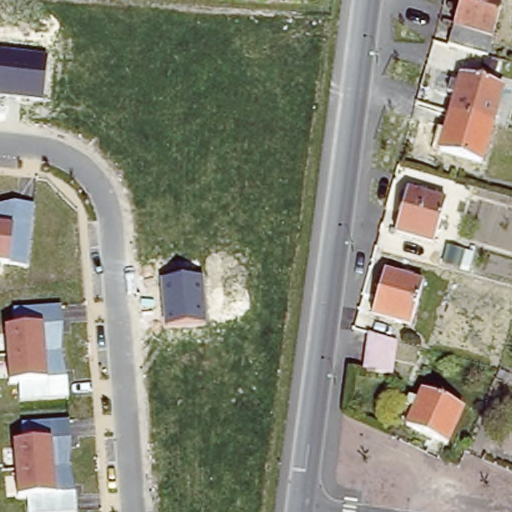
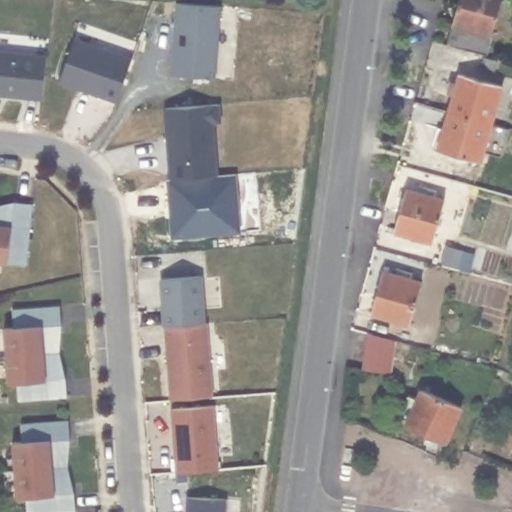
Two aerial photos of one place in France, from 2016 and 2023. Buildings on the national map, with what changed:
unchanged [(466,0),(508,0),(497,38),(458,27),(466,0)]
new [(172,75),(177,2),(222,6),(217,77),(172,75)]
new [(78,40),(137,60),(122,102),(63,82),(78,40)]
unchanged [(0,52),(47,57),(42,100),(0,95),(0,52)]
unchanged [(450,109),(461,70),(503,82),(493,119),(450,109)]
new [(171,179),(165,107),(222,103),(223,124),(215,125),(220,174),(171,179)]
unchanged [(493,119),(482,158),(440,146),(450,109),(493,119)]
unchanged [(412,186),(450,197),(438,240),(400,229),(412,186)]
unchanged [(33,205),(27,268),(0,264),(0,205),(15,201),(33,205)]
unchanged [(389,272),(427,283),(415,326),(377,315),(389,272)]
unchanged [(161,280),(201,275),(205,323),(165,326),(161,280)]
unchanged [(17,383),(9,385),(5,325),(12,324),(10,308),(60,305),(63,323),(58,350),(67,377),(70,398),(20,402),(17,383)]
new [(170,400),(170,390),(165,326),(205,323),(209,323),(212,387),(213,397),(170,400)]
unchanged [(395,340),(392,375),(367,368),(370,334),(395,340)]
unchanged [(410,426),(426,388),(467,405),(452,443),(410,426)]
new [(178,472),(172,410),(215,406),(221,468),(178,472)]
unchanged [(17,498),(12,442),(21,441),(19,423),(70,418),(72,437),(67,465),(76,492),(78,512),(29,512),(27,497),(17,498)]
new [(187,512),(187,497),(227,499),(227,512),(187,512)]

